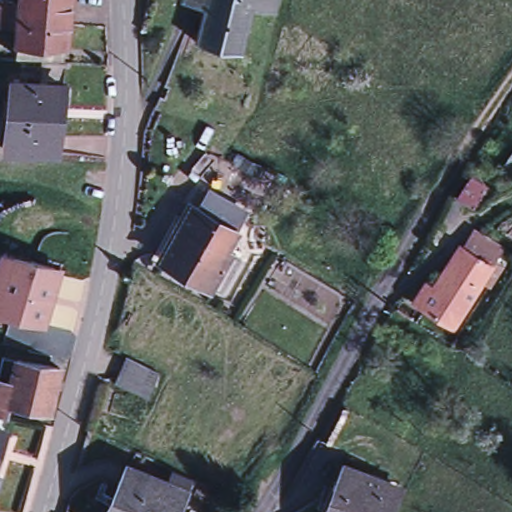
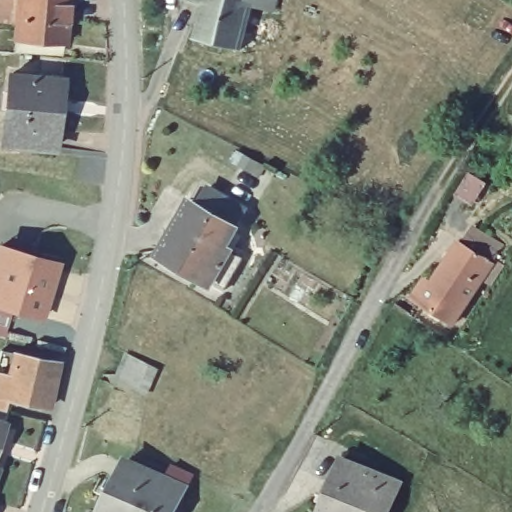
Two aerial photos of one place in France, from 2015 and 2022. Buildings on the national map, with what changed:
unchanged [(12,52),(10,27),(0,25),(0,0),(70,0),(65,57),(12,52)]
unchanged [(252,5),(241,49),(196,38),(204,4),(188,0),(276,0),(273,10),(252,5)]
unchanged [(11,75),(62,80),(55,148),(3,142),(11,75)]
unchanged [(237,258),(217,291),(155,255),(185,204),(192,207),(203,188),(238,208),(227,228),(217,247),(237,258)]
unchanged [(418,304),(459,241),(465,245),(476,228),(503,246),(492,263),(451,326),(418,304)]
unchanged [(53,262),(52,267),(58,269),(50,295),(48,294),(42,316),(0,303),(0,246),(53,262)]
unchanged [(18,344),(62,354),(52,398),(9,389),(7,400),(0,398),(0,362),(13,366),(18,344)]
unchanged [(158,367),(147,393),(117,380),(129,353),(158,367)]
unchanged [(10,411),(5,423),(0,439),(0,408),(10,411)]
unchanged [(337,484),(332,482),(342,460),(396,484),(384,512),(325,512),(337,484)]
unchanged [(127,465),(185,492),(176,512),(104,512),(127,465)]

